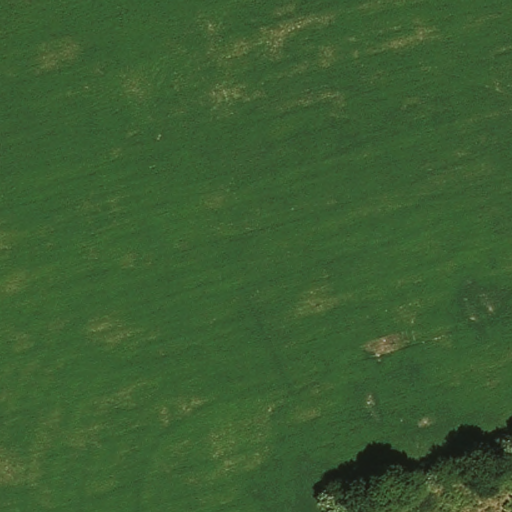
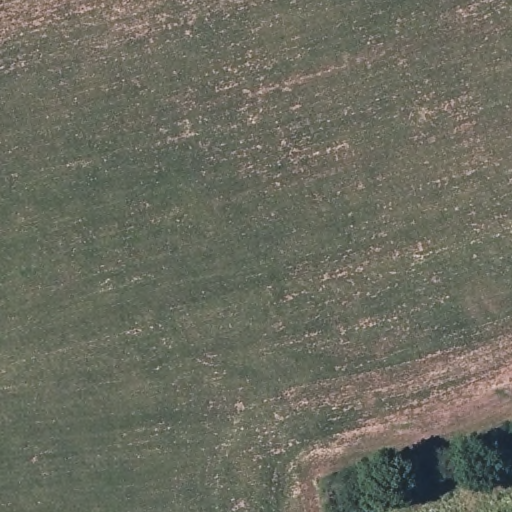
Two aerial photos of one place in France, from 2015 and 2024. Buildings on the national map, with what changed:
[]

